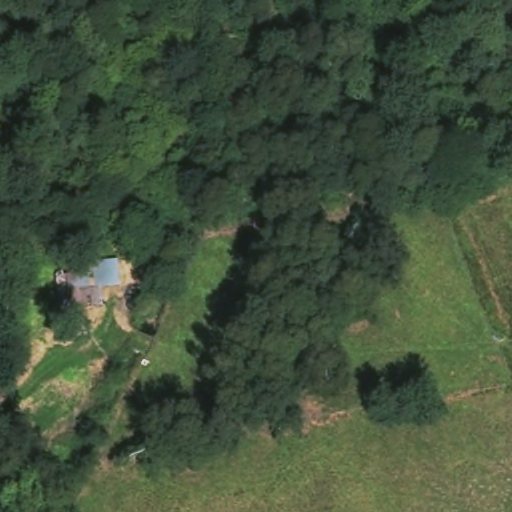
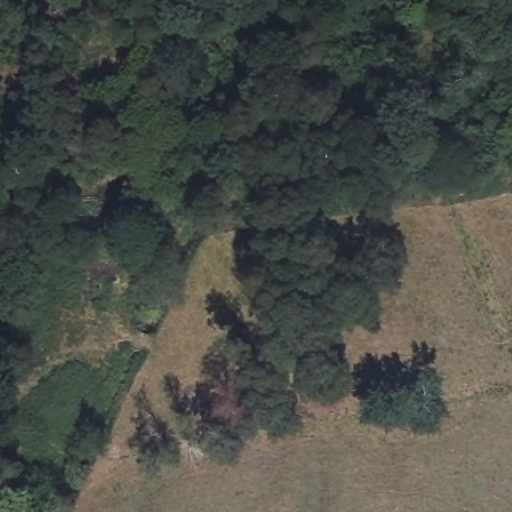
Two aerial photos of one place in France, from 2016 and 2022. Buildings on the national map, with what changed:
unchanged [(131,287),(94,288),(90,262),(110,261),(124,261),(131,287)]

